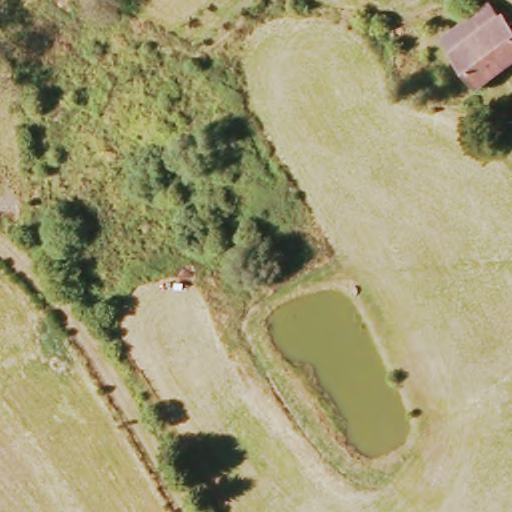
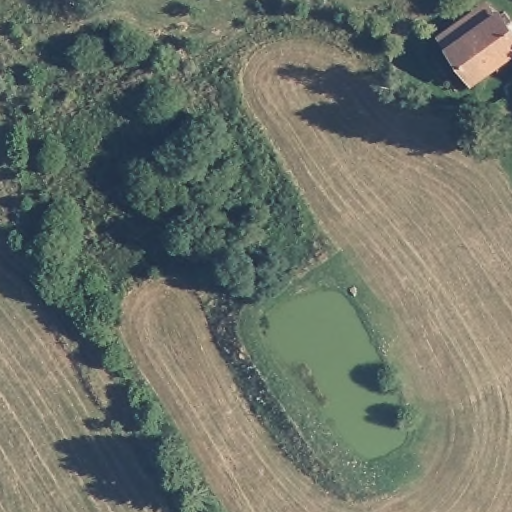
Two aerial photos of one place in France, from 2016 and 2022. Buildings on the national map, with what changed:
unchanged [(489,9),(507,20),(512,26),(512,59),(493,73),(480,81),(446,39),(471,21),(489,9)]

